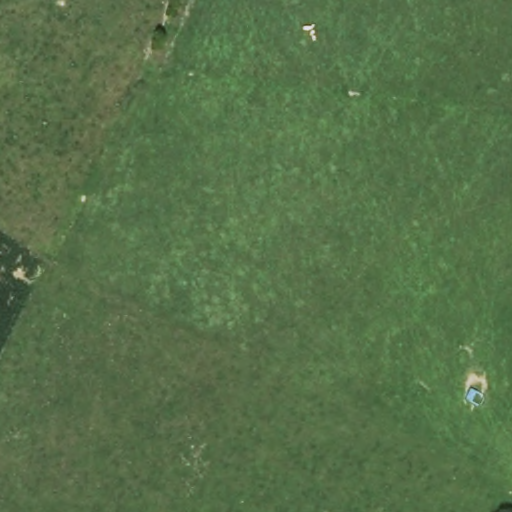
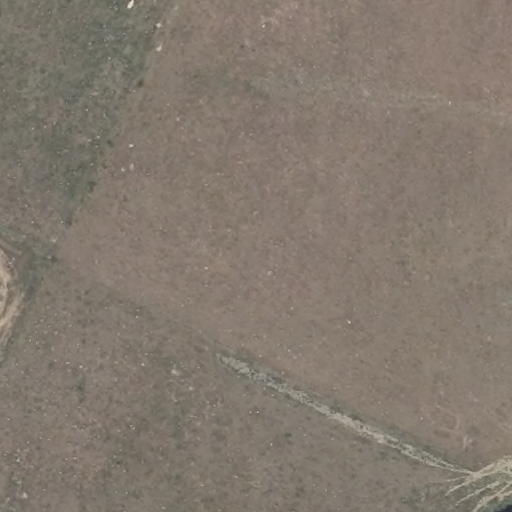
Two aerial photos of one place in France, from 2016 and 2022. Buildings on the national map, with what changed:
[]

